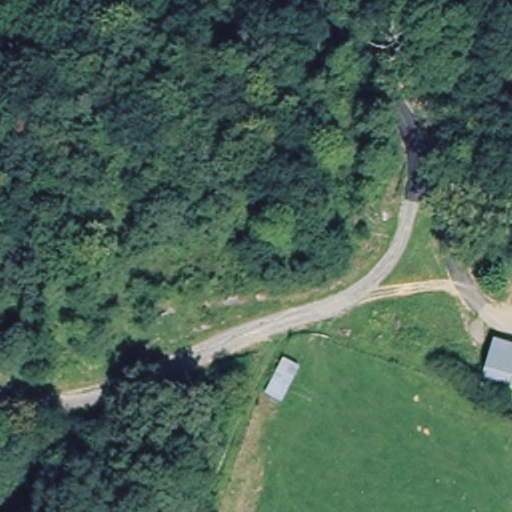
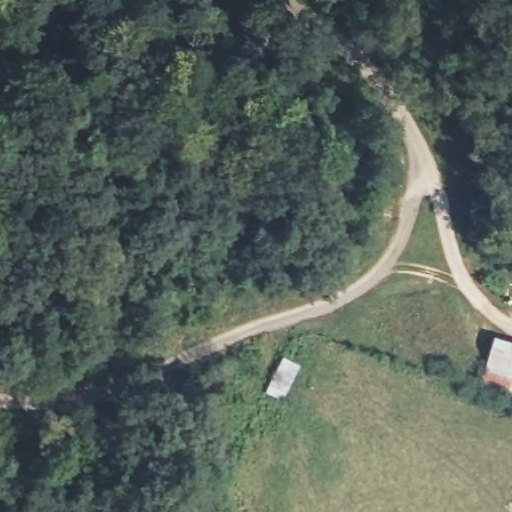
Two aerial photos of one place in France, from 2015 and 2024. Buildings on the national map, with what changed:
unchanged [(512,345),(512,376),(508,393),(478,385),(492,339),(512,345)]
unchanged [(508,393),(512,376),(512,394),(508,393)]

